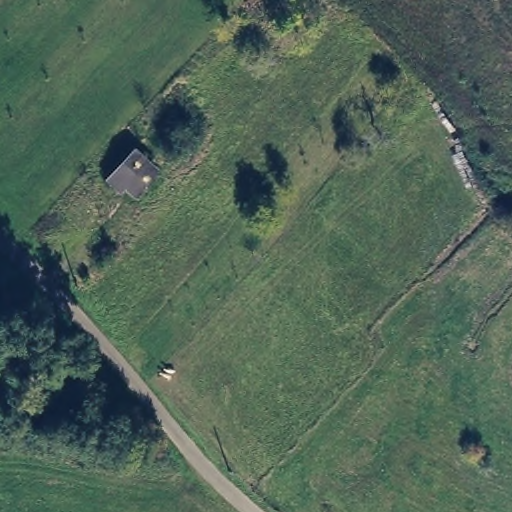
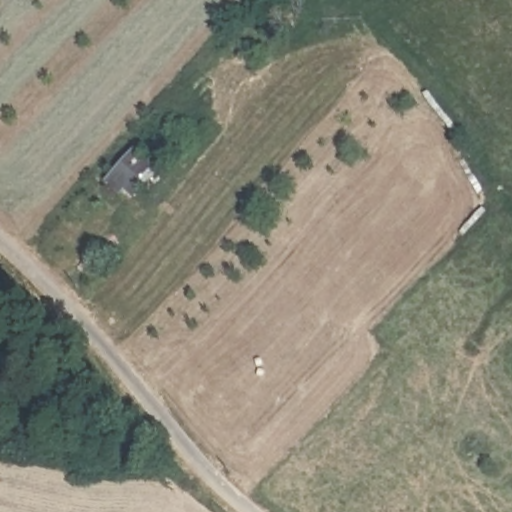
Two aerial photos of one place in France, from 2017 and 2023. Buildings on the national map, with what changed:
unchanged [(129,149),(153,169),(133,192),(109,171),(129,149)]

